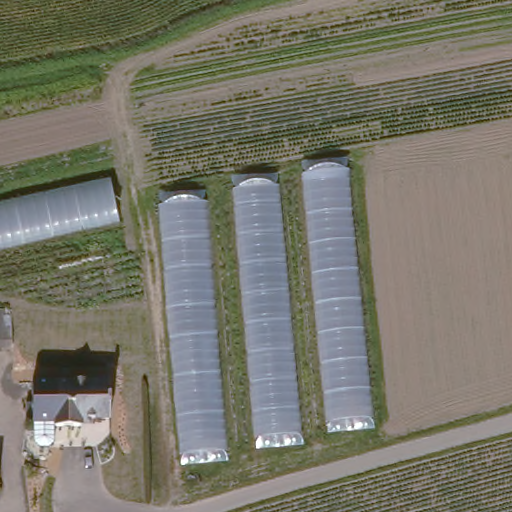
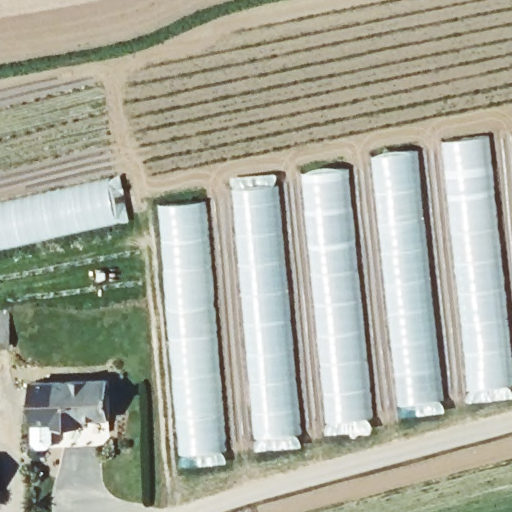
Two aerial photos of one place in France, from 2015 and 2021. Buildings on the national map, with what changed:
new [(444,140),(486,135),(512,386),(471,391),(444,140)]
new [(376,155),(416,151),(441,402),(402,406),(376,155)]
unchanged [(301,162),(348,157),(373,428),(327,432),(301,162)]
unchanged [(231,176),(279,173),(302,445),(257,448),(231,176)]
unchanged [(0,250),(0,205),(109,179),(120,222),(0,250)]
unchanged [(228,462),(182,467),(159,194),(207,191),(228,462)]
unchanged [(12,347),(0,348),(0,310),(10,310),(12,347)]
unchanged [(102,379),(104,421),(74,422),(74,430),(49,432),(49,446),(45,451),(31,451),(26,447),(25,425),(23,382),(102,379)]

